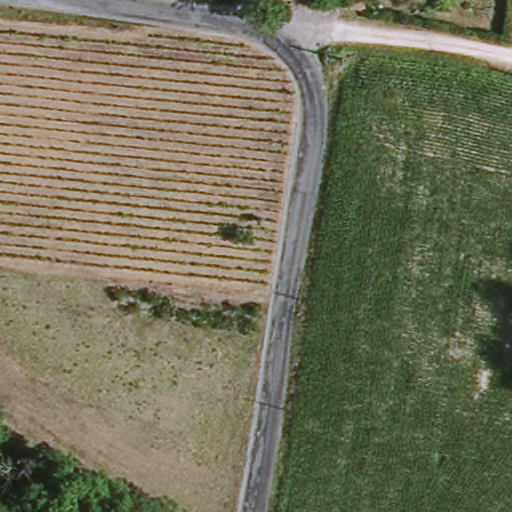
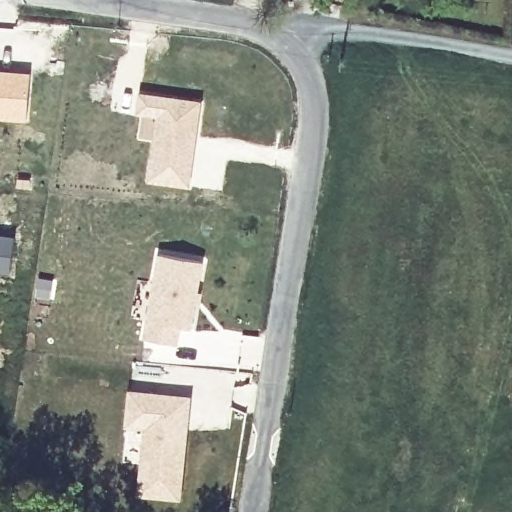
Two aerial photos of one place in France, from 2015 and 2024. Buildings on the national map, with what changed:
new [(29,73),(26,119),(0,118),(0,70),(29,73)]
new [(137,90),(203,99),(189,190),(143,183),(150,141),(136,139),(139,118),(133,116),(137,90)]
new [(15,235),(9,275),(0,274),(0,233),(15,235)]
new [(178,342),(145,336),(159,253),(203,260),(191,326),(181,325),(178,342)]
new [(127,389),(192,395),(180,501),(135,495),(140,434),(123,432),(127,389)]

